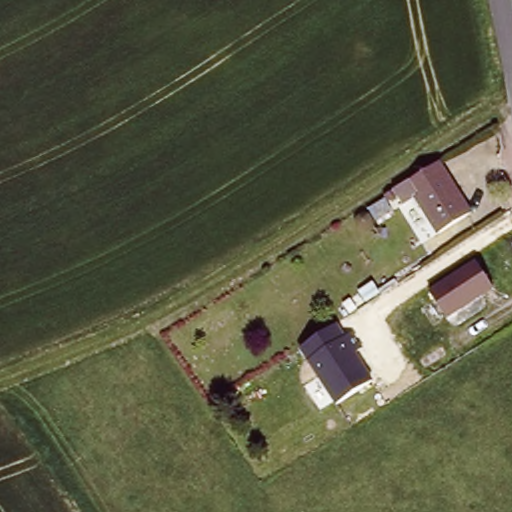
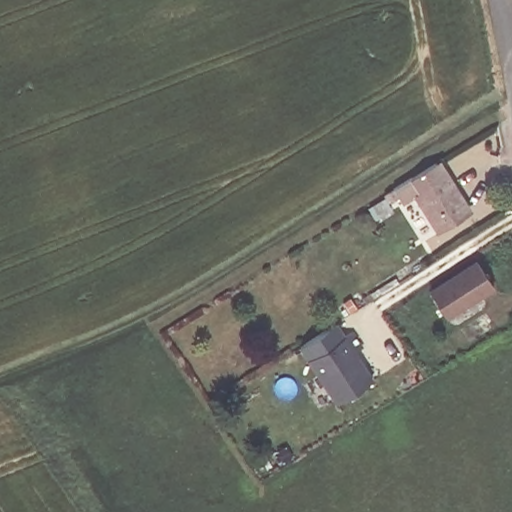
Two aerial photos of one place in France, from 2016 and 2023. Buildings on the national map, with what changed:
unchanged [(476,206),(443,226),(421,190),(406,200),(402,193),(395,197),(390,189),(445,155),(476,206)]
unchanged [(434,292),(479,262),(495,286),(450,316),(434,292)]
unchanged [(298,348),(339,322),(347,336),(353,333),(361,347),(357,350),(374,381),(335,404),(298,348)]

